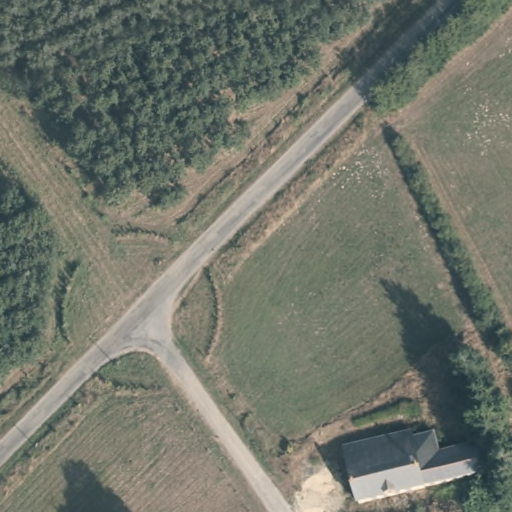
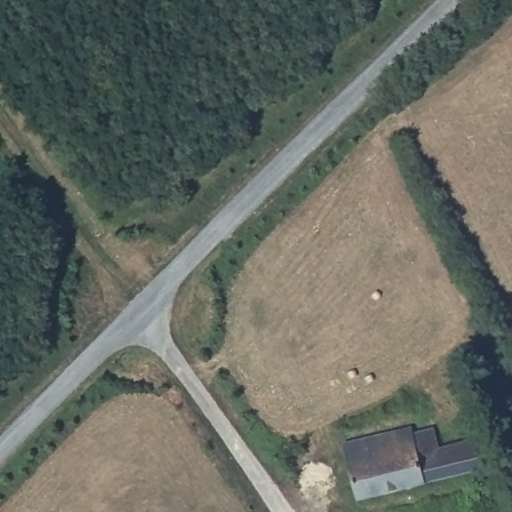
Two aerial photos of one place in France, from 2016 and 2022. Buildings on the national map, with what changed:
unchanged [(427,474),(430,484),(363,501),(349,444),(413,428),(421,455),(483,439),(488,457),(427,474)]

